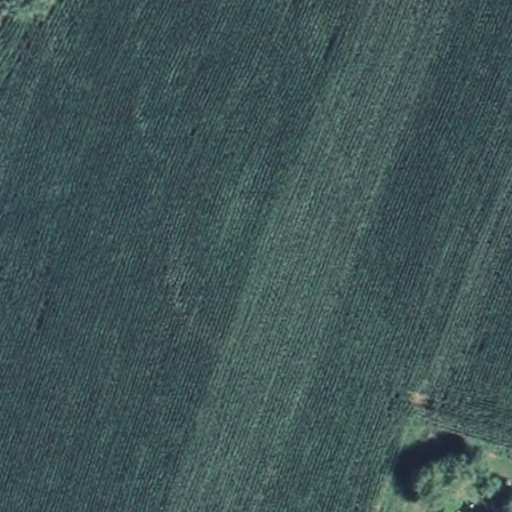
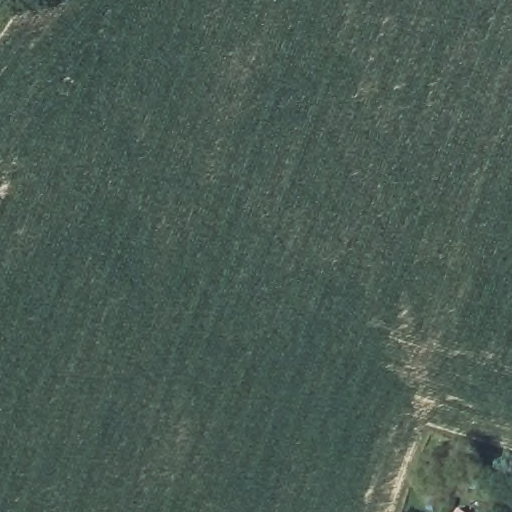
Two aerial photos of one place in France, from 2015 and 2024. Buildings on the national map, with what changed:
unchanged [(454,508),(462,512),(451,512),(454,508)]

